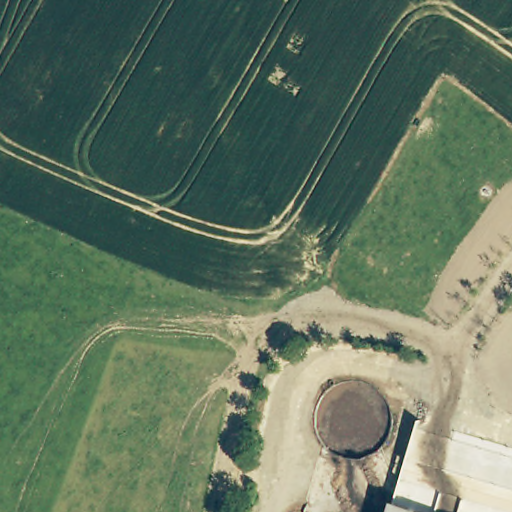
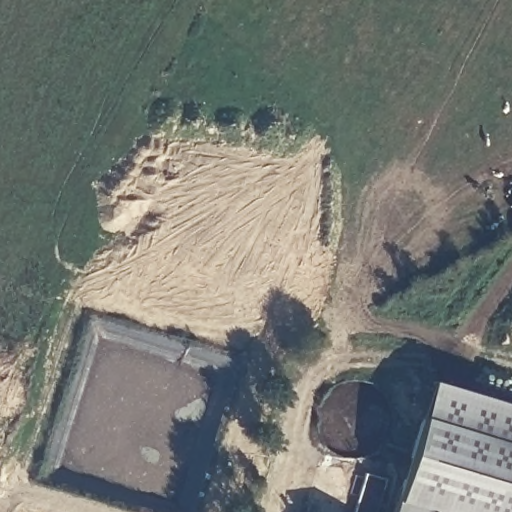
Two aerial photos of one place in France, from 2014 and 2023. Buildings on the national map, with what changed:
new [(392,498),(418,417),(512,445),(512,512),(435,512),(392,498)]
unchanged [(392,498),(435,512),(387,512),(392,498)]

